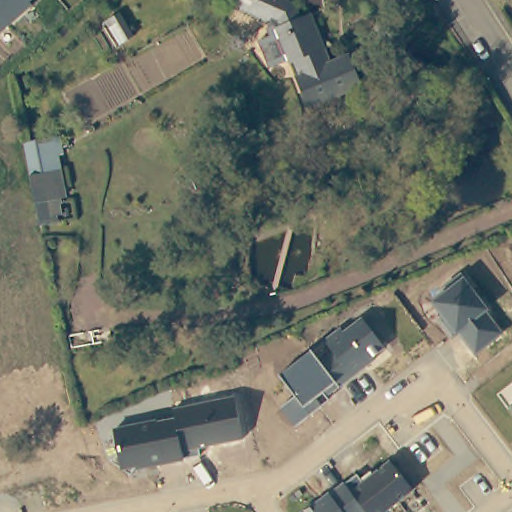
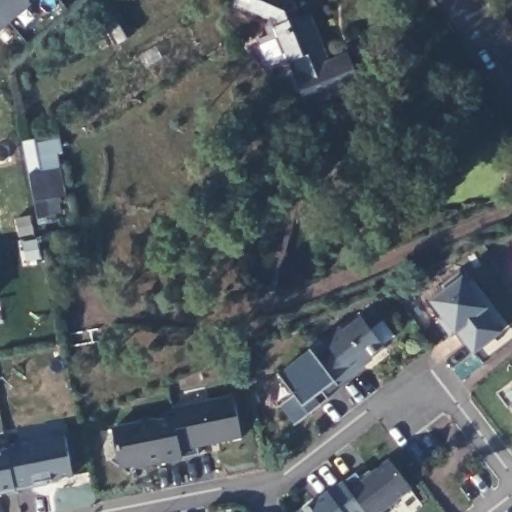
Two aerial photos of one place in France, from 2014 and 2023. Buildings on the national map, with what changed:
unchanged [(29,3),(0,29),(0,0),(27,0),(29,3)]
unchanged [(256,38),(267,33),(264,25),(265,20),(215,0),(280,0),(293,5),(297,16),(307,12),(320,45),(318,46),(324,61),(346,53),(358,82),(305,104),(293,74),(299,72),(293,59),(288,61),(286,58),(267,66),(256,38)]
unchanged [(53,134),(56,152),(40,155),(45,185),(50,184),(55,212),(50,213),(52,221),(35,224),(23,169),(18,141),(53,134)]
unchanged [(474,355),(457,333),(452,337),(427,302),(460,276),(485,310),(484,312),(500,334),(474,355)]
unchanged [(325,398),(327,401),(294,429),(278,407),(293,396),(278,374),(311,348),(317,355),(327,346),(323,341),(339,328),(342,332),(360,317),(382,347),(325,398)]
unchanged [(198,447),(199,455),(182,459),(181,461),(133,469),(129,475),(111,462),(114,457),(112,430),(174,419),(174,409),(233,398),(240,440),(198,447)]
unchanged [(512,405),(512,411),(508,407),(512,405)]
new [(65,436),(73,478),(56,480),(56,485),(1,496),(1,493),(0,493),(0,450),(65,436)]
unchanged [(304,512),(327,492),(329,495),(355,474),(359,481),(387,462),(410,490),(383,512),(304,512)]

